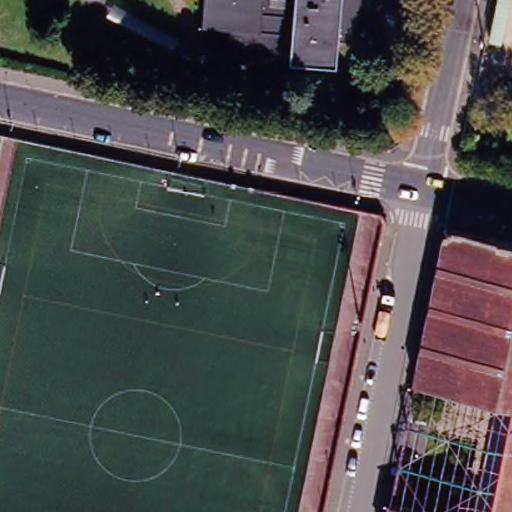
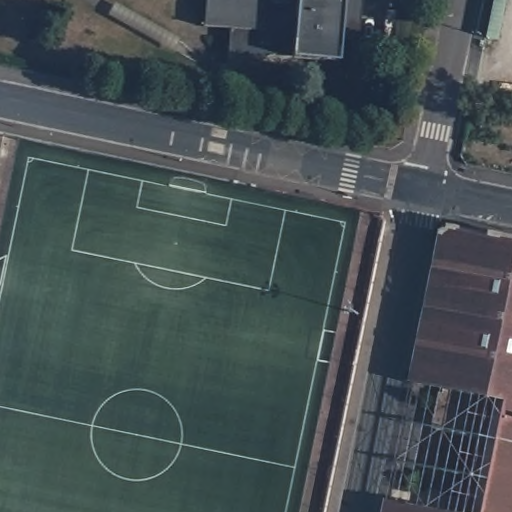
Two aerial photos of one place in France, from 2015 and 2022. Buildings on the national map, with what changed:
unchanged [(356,36),(337,35),(292,30),(290,50),(229,63),(233,26),(201,23),(203,0),(359,0),(356,36)]
unchanged [(337,35),(336,59),(290,55),(290,50),(292,30),(337,35)]
unchanged [(442,497),(446,481),(450,476),(455,475),(471,479),(479,440),(442,432),(450,397),(441,395),(442,390),(414,384),(431,302),(444,234),(452,229),(512,242),(512,512),(449,512),(452,499),(442,497)]
unchanged [(428,512),(388,512),(390,500),(392,501),(392,504),(428,512)]

